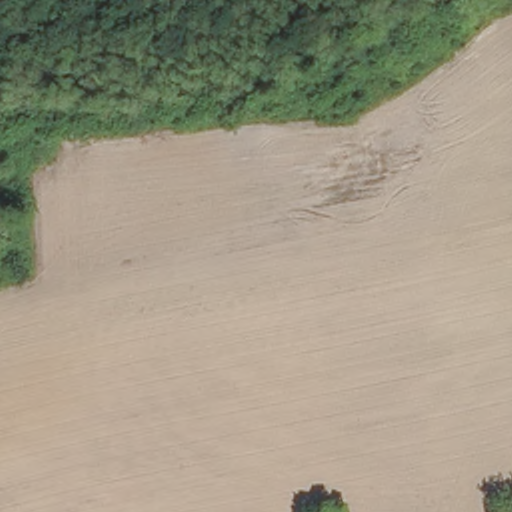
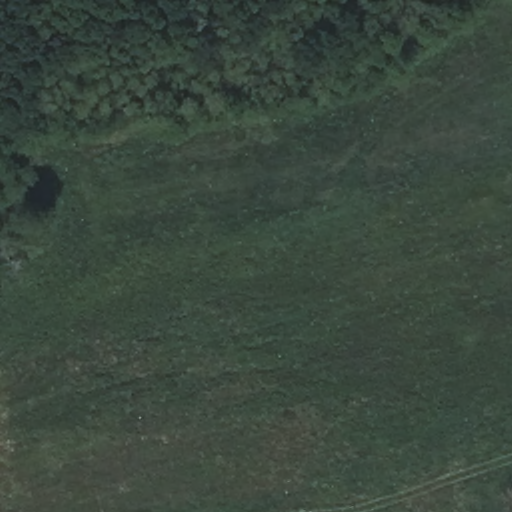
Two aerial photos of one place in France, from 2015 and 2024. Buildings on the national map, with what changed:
[]

